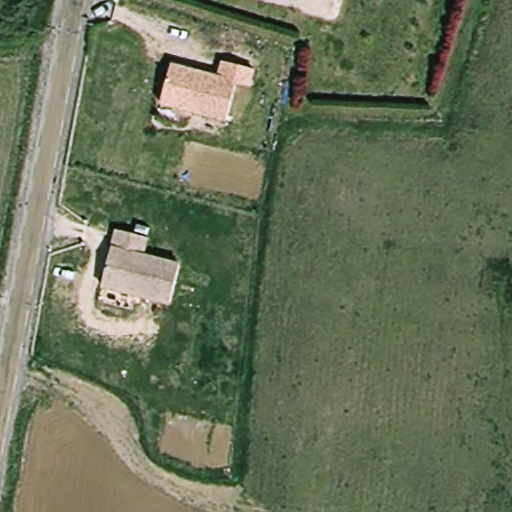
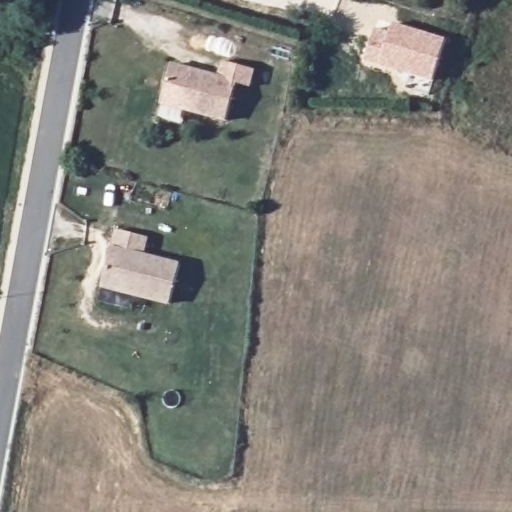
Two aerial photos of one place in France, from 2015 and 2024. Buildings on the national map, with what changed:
new [(446,39),(433,80),(381,66),(365,62),(375,28),(390,32),(394,23),(446,39)]
unchanged [(174,64),(222,79),(227,63),(257,72),(252,89),(238,85),(227,121),(163,102),(174,64)]
unchanged [(132,236),(127,255),(164,265),(153,303),(85,283),(102,227),(132,236)]

